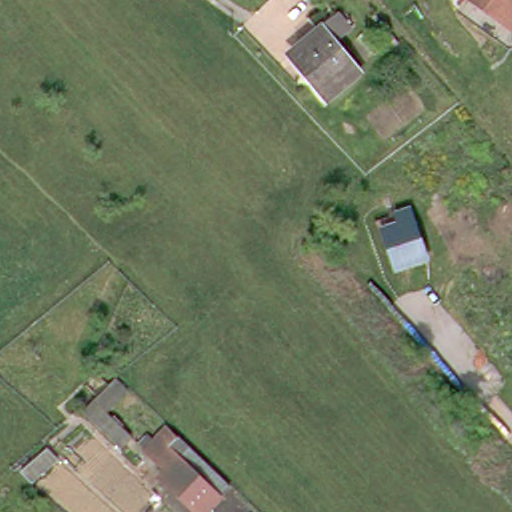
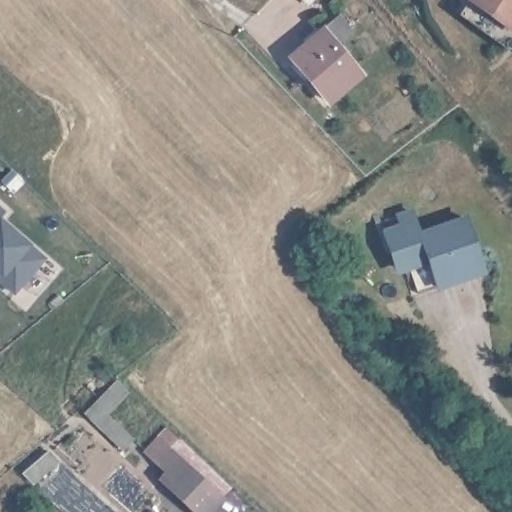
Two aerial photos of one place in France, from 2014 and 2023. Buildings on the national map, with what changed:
unchanged [(485,0),(512,0),(512,14),(505,15),(485,0)]
unchanged [(364,74),(333,100),(298,58),(329,31),(364,74)]
new [(14,294),(0,283),(0,204),(8,210),(1,218),(46,256),(14,294)]
unchanged [(402,228),(397,214),(411,210),(426,258),(397,267),(385,233),(402,228)]
new [(464,214),(485,272),(435,288),(426,258),(417,230),(464,214)]
unchanged [(130,387),(109,409),(134,433),(123,444),(85,408),(117,374),(130,387)]
unchanged [(226,512),(186,512),(167,493),(173,486),(152,466),(173,444),(235,502),(226,512)]

